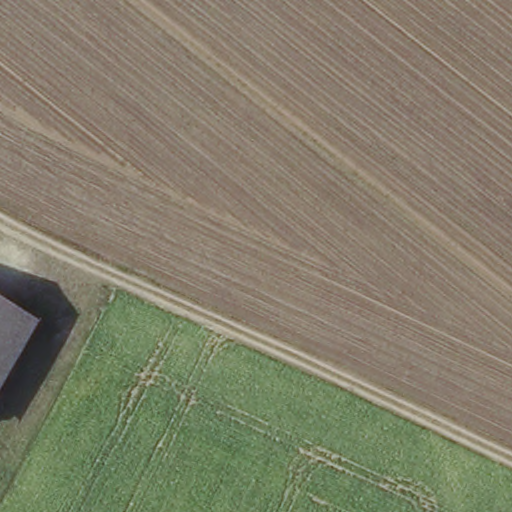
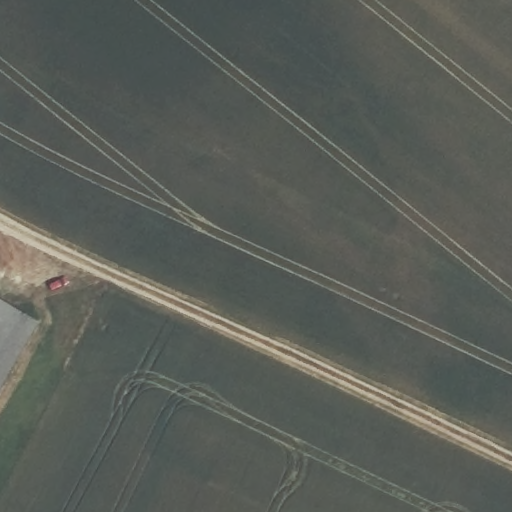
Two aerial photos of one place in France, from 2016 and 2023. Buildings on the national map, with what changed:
unchanged [(0,393),(0,304),(40,328),(0,393)]

